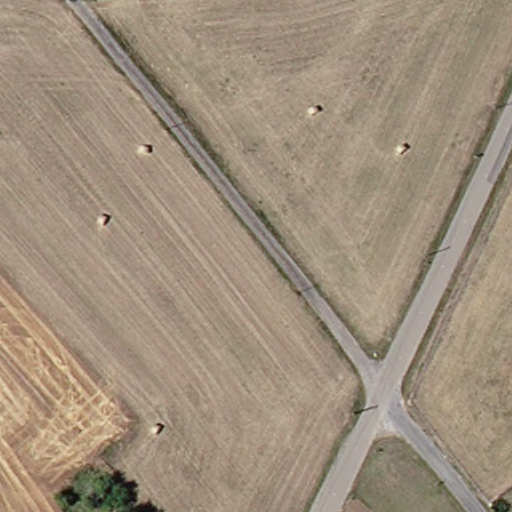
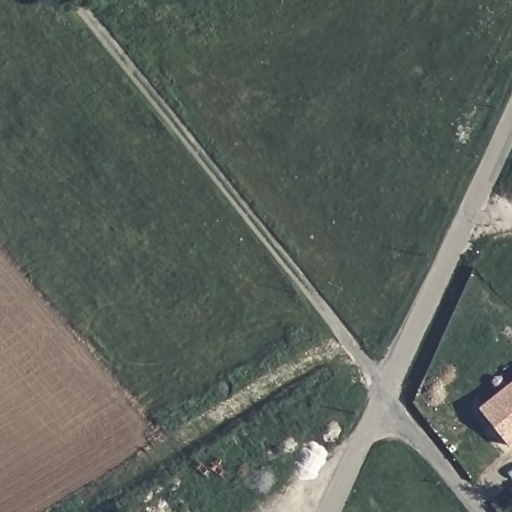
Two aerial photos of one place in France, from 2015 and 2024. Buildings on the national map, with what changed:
new [(510,447),(480,408),(512,382),(512,446),(510,447)]

